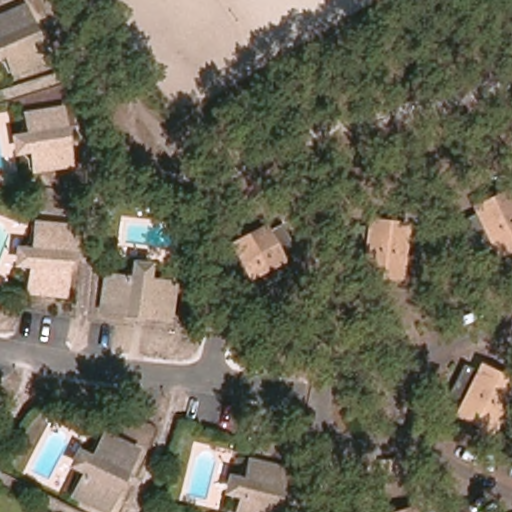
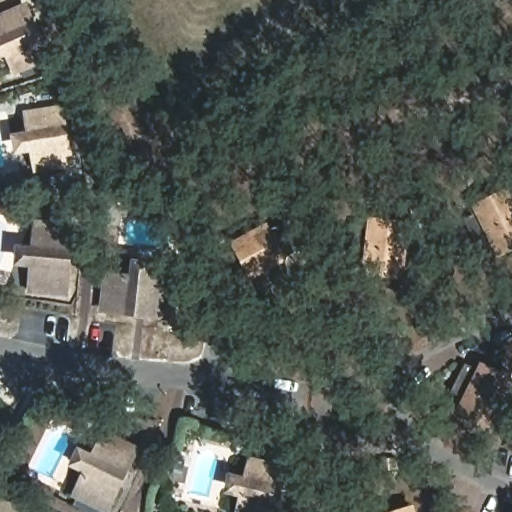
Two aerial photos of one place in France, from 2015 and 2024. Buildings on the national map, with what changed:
unchanged [(44,54),(11,68),(6,52),(0,50),(0,15),(24,5),(44,54)]
unchanged [(19,141),(28,139),(31,135),(28,119),(62,113),(72,164),(37,170),(35,154),(30,150),(19,151),(19,141)]
unchanged [(503,261),(495,247),(481,253),(466,229),(481,220),(479,216),(512,198),(512,256),(503,261)]
unchanged [(221,254),(226,251),(236,246),(233,242),(270,222),(273,226),(283,220),(299,245),(285,254),(293,268),(259,288),(247,274),(242,277),(237,280),(221,254)]
unchanged [(420,264),(407,262),(405,279),(366,274),(367,257),(353,254),(356,226),(370,228),(371,223),(411,227),(410,234),(425,235),(420,264)]
unchanged [(43,224),(78,227),(71,292),(36,288),(38,264),(34,260),(24,259),(26,249),(36,250),(41,247),(43,224)]
unchanged [(171,283),(166,318),(101,311),(105,277),(128,279),(132,275),(134,265),(145,266),(143,276),(146,281),(171,283)]
unchanged [(503,418),(496,431),(461,412),(468,397),(452,389),(467,366),(479,374),(484,366),(512,382),(512,422),(503,418)]
unchanged [(106,436),(137,452),(108,510),(76,496),(87,474),(84,468),(75,464),(81,455),(89,459),(96,458),(106,436)]
unchanged [(253,462),(286,470),(275,512),(239,512),(243,497),(241,492),(231,489),(233,479),(243,481),(248,479),(253,462)]

